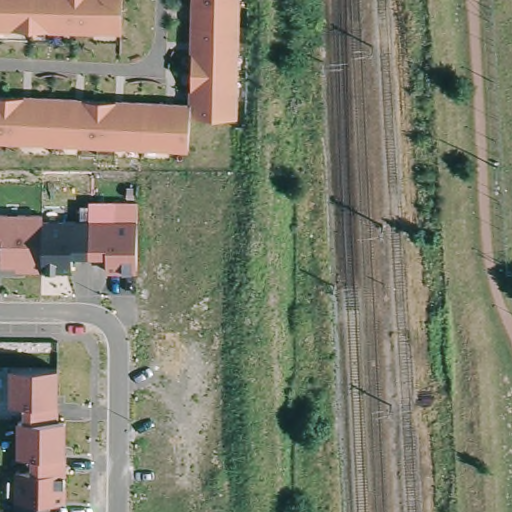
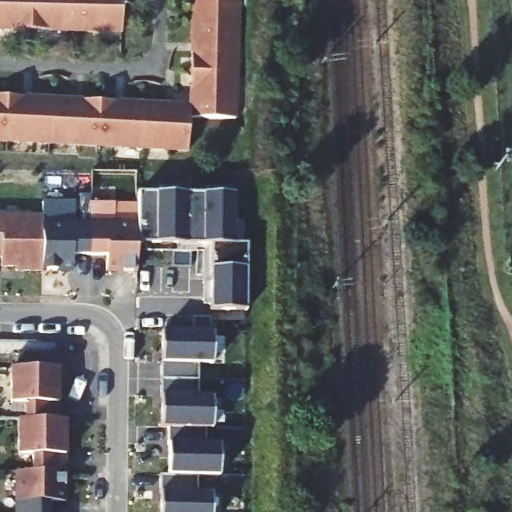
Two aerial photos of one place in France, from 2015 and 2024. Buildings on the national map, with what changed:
unchanged [(0,32),(0,0),(123,0),(122,37),(0,32)]
unchanged [(243,6),(192,5),(192,0),(244,0),(243,6)]
unchanged [(190,116),(188,152),(0,141),(0,96),(189,104),(193,26),(239,28),(236,118),(190,116)]
new [(137,246),(137,226),(137,195),(234,194),(235,245),(137,246)]
unchanged [(44,216),(77,215),(77,201),(87,201),(88,197),(136,198),(137,271),(105,270),(104,261),(72,259),(72,273),(13,272),(13,267),(0,266),(0,213),(44,212),(44,216)]
new [(246,311),(210,311),(210,245),(247,245),(246,311)]
new [(187,322),(207,322),(206,335),(187,335),(187,322)]
new [(160,365),(163,365),(164,335),(212,336),(212,365),(197,365),(197,382),(160,382),(160,365)]
unchanged [(57,420),(65,419),(64,502),(55,502),(55,509),(48,508),(48,512),(13,512),(13,466),(30,467),(30,453),(15,452),(15,413),(21,413),(22,400),(7,399),(8,366),(57,367),(57,420)]
new [(160,400),(160,382),(197,382),(197,401),(211,401),(210,431),(206,431),(168,430),(163,430),(160,430),(160,400)]
new [(159,477),(167,477),(168,447),(168,430),(206,431),(205,447),(220,447),(220,478),(196,478),(196,496),(210,496),(210,512),(159,512),(159,495),(159,477)]

